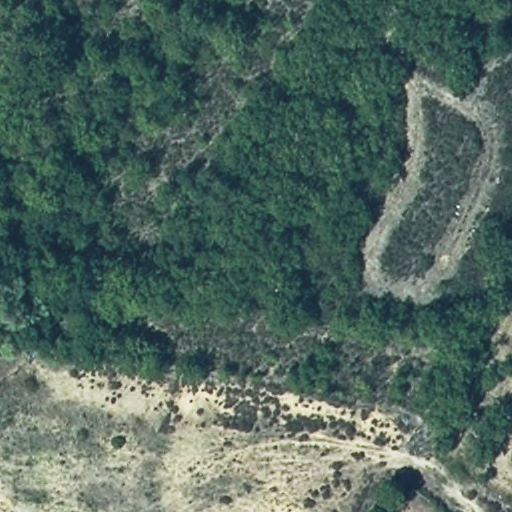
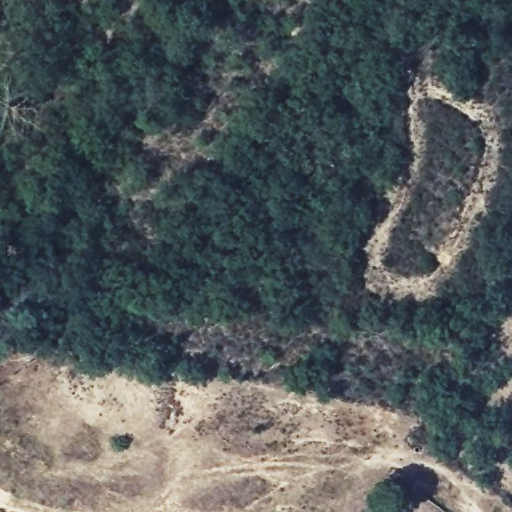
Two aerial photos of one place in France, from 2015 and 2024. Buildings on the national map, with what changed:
[]

